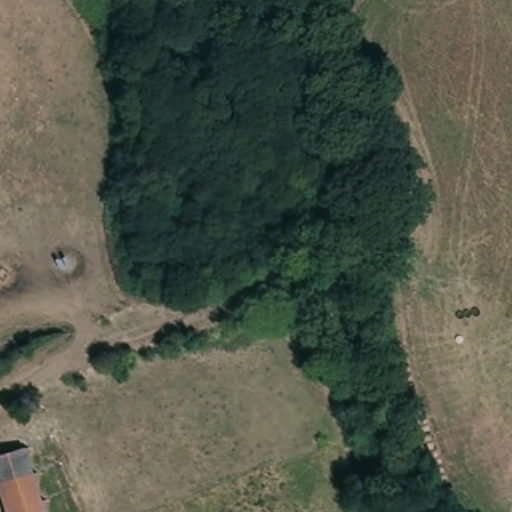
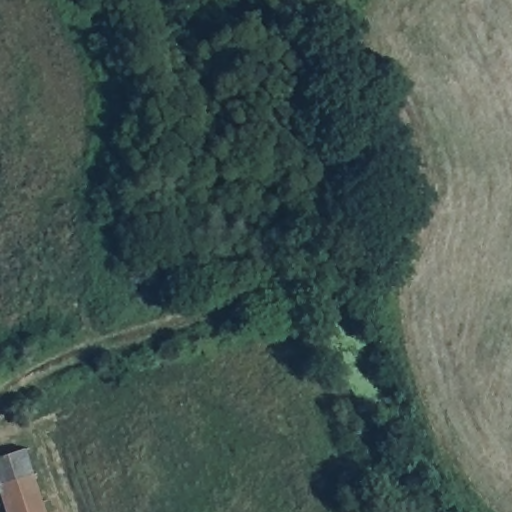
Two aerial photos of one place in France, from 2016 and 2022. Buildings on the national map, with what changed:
unchanged [(2,495),(0,496),(0,458),(25,448),(44,512),(7,512),(2,495)]

